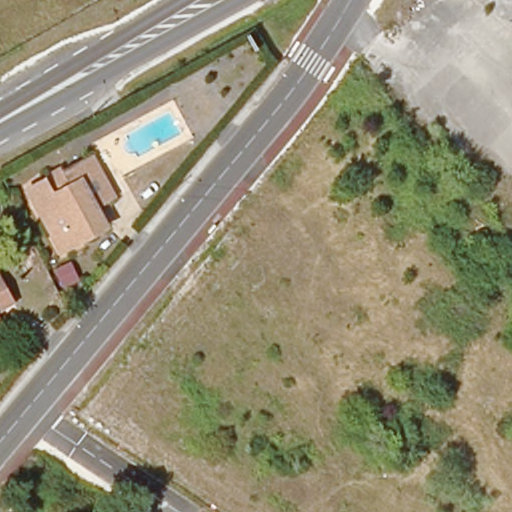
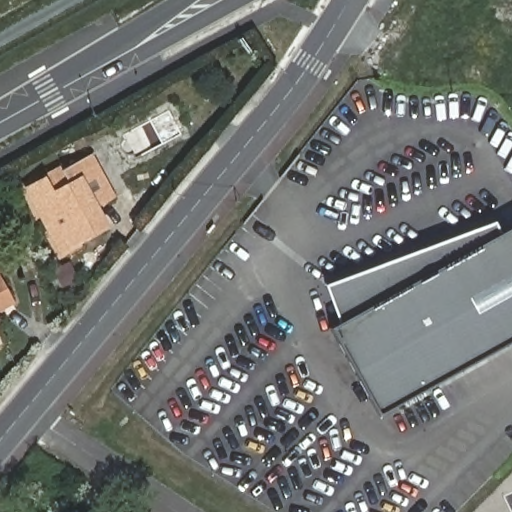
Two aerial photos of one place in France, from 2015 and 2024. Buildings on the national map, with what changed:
unchanged [(52,250),(18,190),(82,154),(92,172),(89,174),(103,199),(86,207),(96,225),(52,250)]
new [(379,416),(331,327),(340,322),(325,285),(494,221),(499,232),(512,225),(512,340),(379,416)]
unchanged [(36,257),(21,266),(13,255),(29,245),(36,257)]
unchanged [(0,305),(0,275),(13,298),(0,305)]

